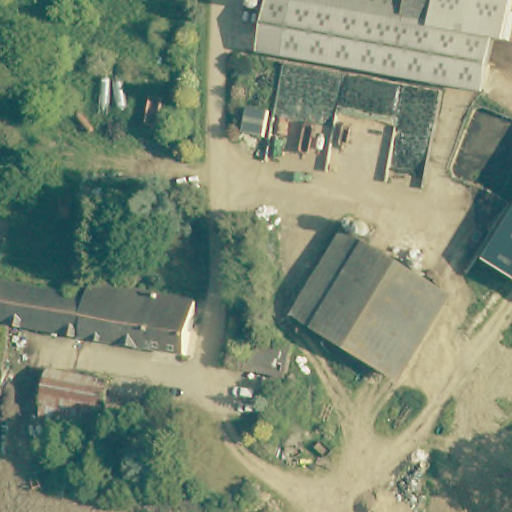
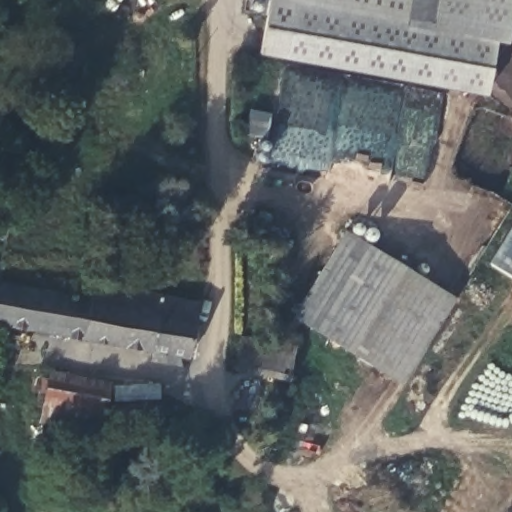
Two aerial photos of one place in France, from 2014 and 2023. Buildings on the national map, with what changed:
unchanged [(285,59),(261,54),(270,0),(295,0),(295,3),(285,59)]
unchanged [(495,40),(405,23),(401,22),(295,3),(295,0),(512,0),(512,11),(507,42),(495,40)]
unchanged [(485,95),(285,59),(295,3),(401,22),(405,23),(495,40),(485,95)]
unchanged [(481,281),(512,227),(512,299),(481,281)]
unchanged [(350,233),(447,293),(396,378),(297,318),(350,233)]
unchanged [(72,293),(72,284),(74,281),(74,280),(76,279),(77,279),(83,279),(85,280),(86,282),(86,295),(94,296),(97,282),(198,298),(190,352),(0,322),(0,289),(2,281),(72,293)]
unchanged [(0,289),(0,280),(2,281),(0,289)]
unchanged [(244,334),(296,345),(289,372),(237,360),(244,334)]
unchanged [(49,369),(108,381),(101,430),(41,419),(49,369)]

